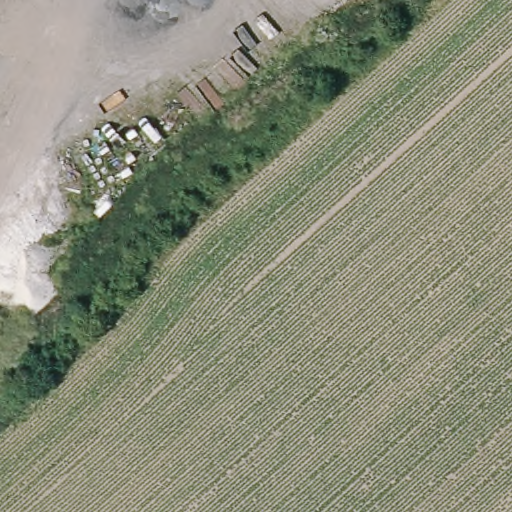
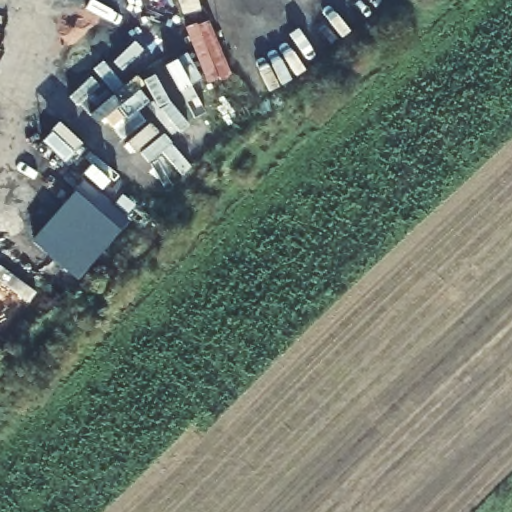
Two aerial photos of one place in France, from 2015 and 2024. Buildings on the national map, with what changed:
new [(131,222),(80,282),(33,240),(83,180),(131,222)]

